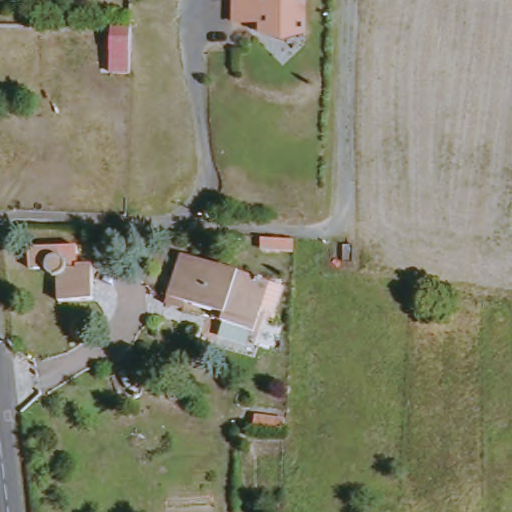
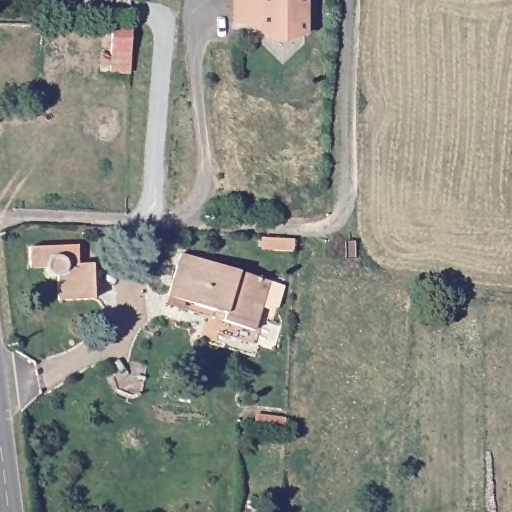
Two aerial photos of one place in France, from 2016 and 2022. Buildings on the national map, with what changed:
unchanged [(245,28),(245,0),(314,0),(315,39),(294,47),(273,38),(263,35),(263,28),(245,28)]
unchanged [(130,35),(131,80),(109,81),(110,35),(130,35)]
unchanged [(292,234),(291,244),(264,243),(264,232),(292,234)]
unchanged [(168,291),(170,284),(184,242),(226,256),(266,272),(280,277),(273,299),(268,303),(258,299),(249,324),(224,315),(221,314),(224,305),(186,290),(184,297),(168,291)]
unchanged [(63,299),(63,273),(52,271),(52,268),(33,267),(34,244),(83,249),(83,265),(91,265),(99,265),(98,300),(96,300),(63,299)]
unchanged [(284,415),(284,425),(255,424),(256,414),(284,415)]

